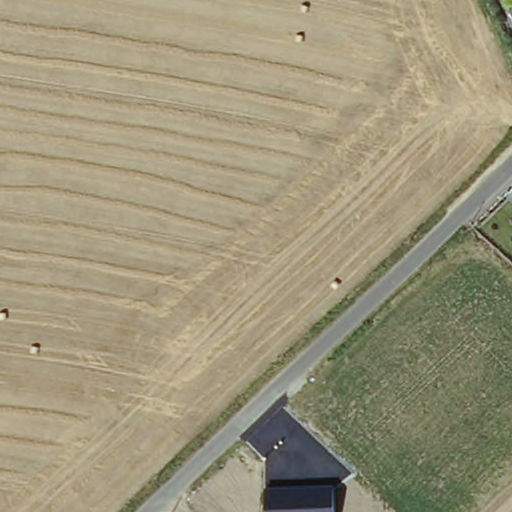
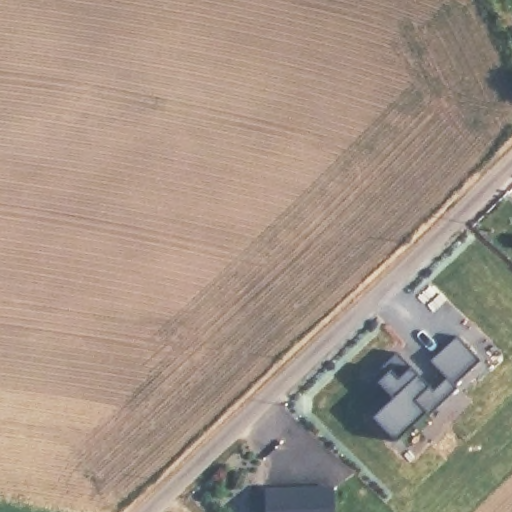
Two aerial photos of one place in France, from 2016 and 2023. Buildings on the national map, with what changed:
new [(452,384),(456,388),(396,441),(373,417),(393,397),(373,377),(399,353),(435,389),(447,378),(431,361),(459,337),(479,361),(452,384)]
unchanged [(265,489),(335,488),(335,512),(266,512),(265,489)]

